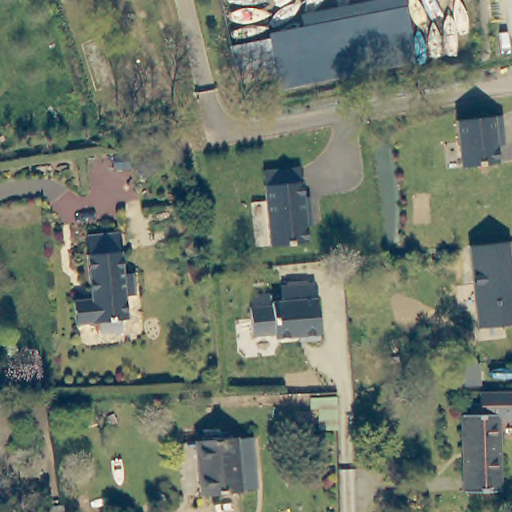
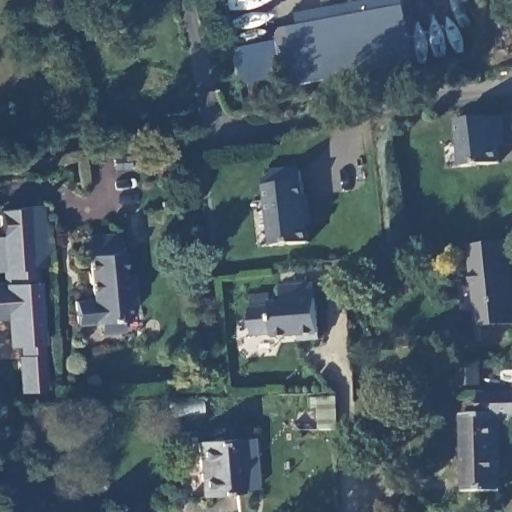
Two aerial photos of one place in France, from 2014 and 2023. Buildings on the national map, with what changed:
unchanged [(269,38),(268,33),(303,26),(300,14),(375,0),(404,0),(416,65),(280,90),(277,77),(238,85),(229,46),(269,38)]
unchanged [(502,117),(505,146),(499,147),(500,164),(463,168),(458,121),(502,117)]
unchanged [(303,183),(304,197),(309,197),(313,227),(308,227),(310,244),(271,247),(265,186),(264,170),(300,167),(303,183)]
new [(36,266),(45,391),(24,392),(20,357),(25,356),(23,344),(11,346),(9,318),(0,318),(0,284),(19,283),(17,268),(0,269),(0,236),(3,236),(1,208),(42,204),(47,267),(36,266)]
unchanged [(512,325),(479,328),(470,247),(509,242),(512,270),(512,325)]
unchanged [(118,247),(120,268),(123,268),(125,290),(135,289),(138,311),(127,313),(128,334),(123,334),(123,345),(100,347),(99,337),(76,339),(74,315),(89,313),(85,269),(89,269),(88,250),(118,247)]
unchanged [(250,295),(273,293),(273,301),(281,300),(280,285),(316,283),(317,298),(320,336),(275,339),(274,334),(253,336),(250,295)]
unchanged [(496,491),(462,491),(461,413),(467,413),(467,402),(480,402),(479,396),(479,391),(512,391),(512,415),(496,415),(496,491)]
unchanged [(320,419),(320,401),(337,400),(337,419),(320,419)]
unchanged [(197,444),(252,441),(255,493),(200,496),(197,444)]

